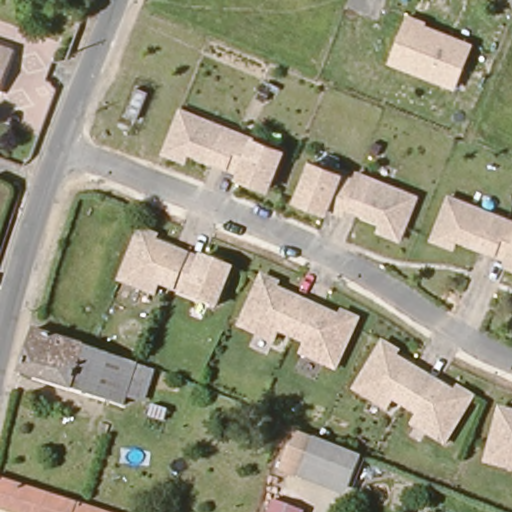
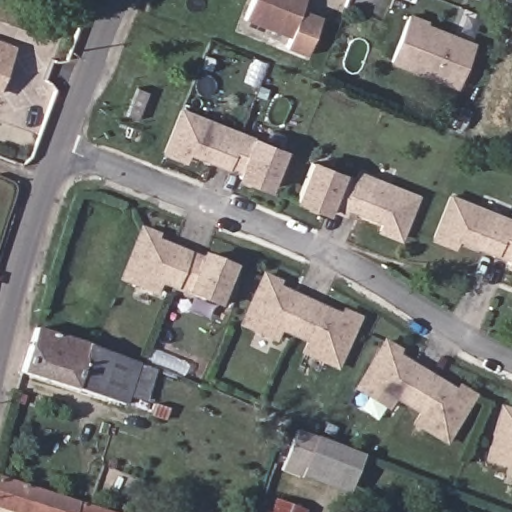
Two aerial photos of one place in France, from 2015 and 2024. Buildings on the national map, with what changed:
new [(301,8),(321,16),(305,56),(285,46),(290,36),(244,19),(251,0),(304,0),(301,8)]
unchanged [(475,42),(456,90),(388,64),(407,12),(428,20),(426,24),(475,42)]
unchanged [(0,46),(15,52),(0,92),(0,46)]
unchanged [(265,189),(236,177),(238,172),(186,151),(182,160),(162,152),(164,150),(179,110),(281,151),(265,189)]
unchanged [(402,239),(383,230),(386,222),(349,206),(345,214),(331,207),(329,212),(300,200),(315,163),(358,180),(362,172),(420,196),(402,239)]
unchanged [(460,237),(456,246),(436,238),(453,196),(512,219),(512,258),(460,237)]
unchanged [(234,268),(220,305),(161,282),(157,293),(123,280),(142,232),(142,230),(158,235),(157,238),(156,241),(204,260),(205,257),(233,268),(234,268)]
unchanged [(511,262),(512,260),(512,263),(511,262)]
unchanged [(305,352),(310,342),(281,329),(277,340),(244,325),(263,280),(265,275),(281,282),(279,286),(278,287),(342,316),(345,312),(360,318),(339,367),(305,352)]
unchanged [(134,406),(30,369),(43,327),(147,366),(163,371),(154,400),(138,393),(134,406)]
unchanged [(418,423),(423,413),(397,396),(391,406),(360,388),(387,342),(401,351),(398,356),(459,392),(461,387),(476,396),(449,441),(418,423)]
unchanged [(162,419),(150,414),(152,405),(165,410),(162,419)]
unchanged [(486,459),(500,408),(512,411),(512,466),(486,459)]
unchanged [(362,457),(350,487),(303,470),(315,439),(362,457)]
unchanged [(0,478),(105,512),(4,512),(0,511),(0,478)]
unchanged [(292,512),(275,512),(277,506),(292,512)]

